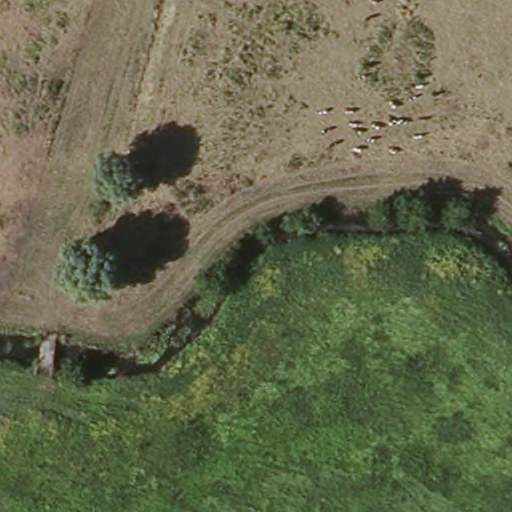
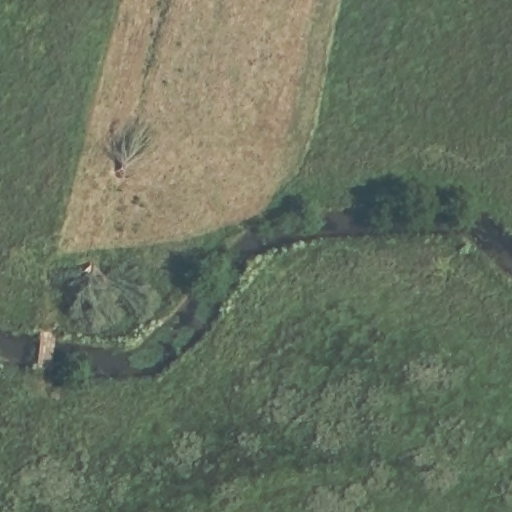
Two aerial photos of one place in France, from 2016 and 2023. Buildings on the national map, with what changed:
[]

